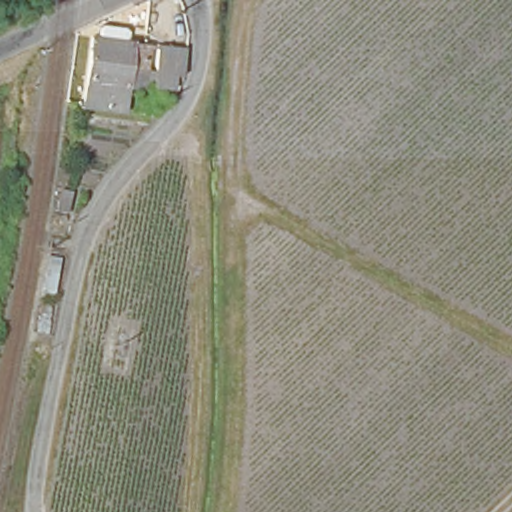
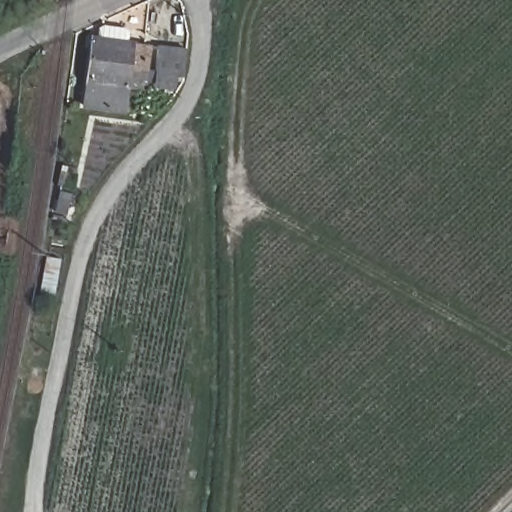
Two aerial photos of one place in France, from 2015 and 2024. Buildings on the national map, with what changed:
unchanged [(86,39),(189,50),(187,79),(178,78),(174,91),(146,87),(146,93),(82,85),(86,39)]

